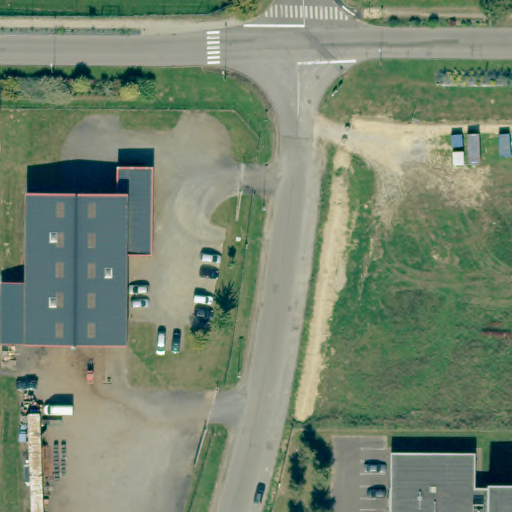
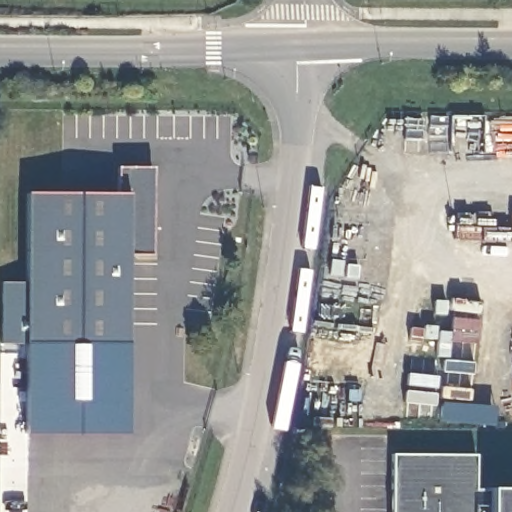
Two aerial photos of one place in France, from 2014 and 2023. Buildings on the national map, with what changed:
unchanged [(145,167),(153,176),(152,255),(127,255),(127,345),(25,344),(27,193),(77,193),(117,193),(117,167),(145,167)]
new [(2,344),(4,282),(26,283),(25,344),(2,344)]
new [(127,435),(25,436),(25,344),(127,345),(127,435)]
unchanged [(470,449),(470,484),(482,484),(482,483),(512,484),(512,512),(386,512),(386,449),(470,449)]

